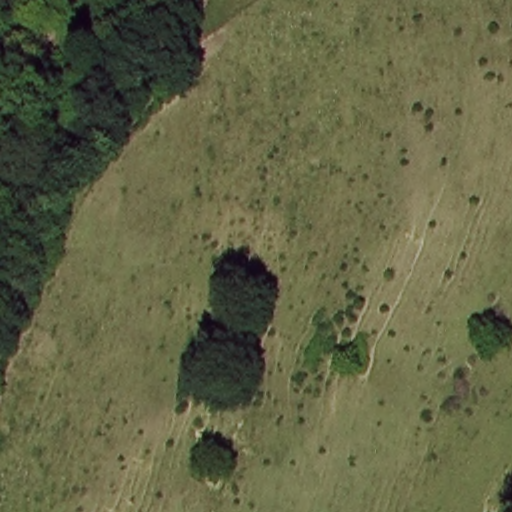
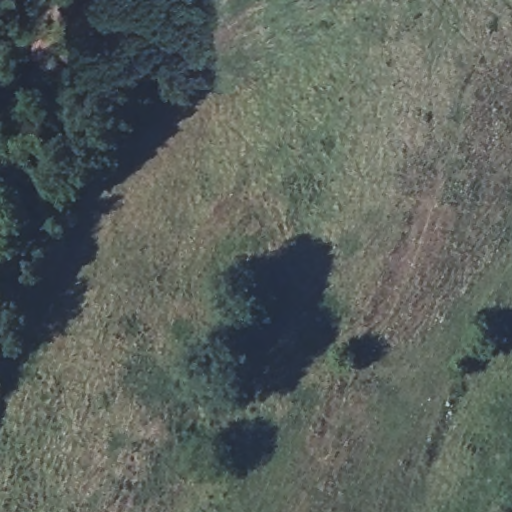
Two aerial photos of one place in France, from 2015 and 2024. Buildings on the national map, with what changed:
[]

